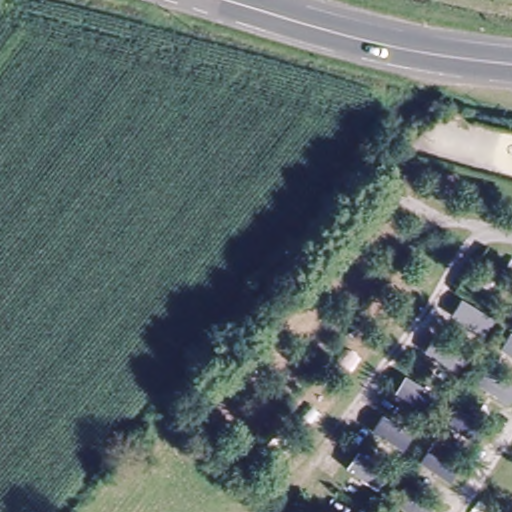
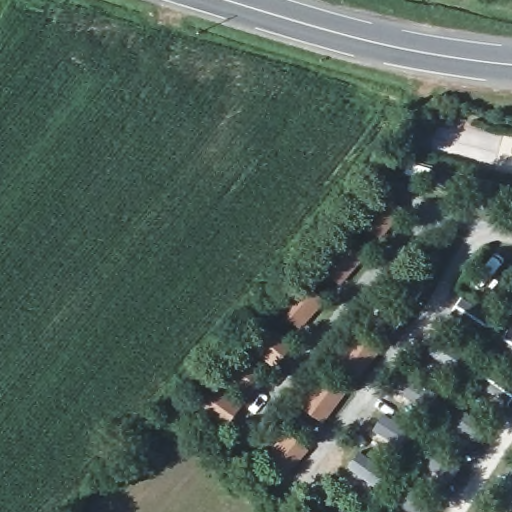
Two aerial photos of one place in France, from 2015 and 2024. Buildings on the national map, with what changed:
[]

